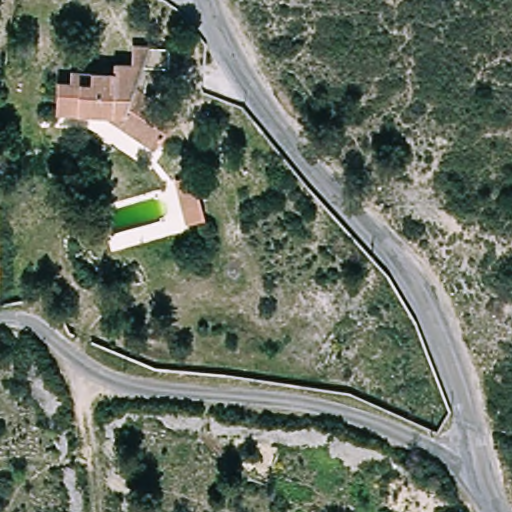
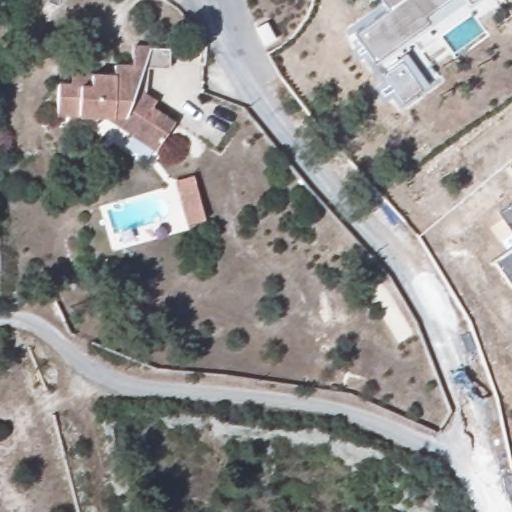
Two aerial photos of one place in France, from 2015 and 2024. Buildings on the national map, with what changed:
new [(353,31),(389,6),(385,0),(462,0),(374,62),(353,31)]
new [(468,0),(471,0),(468,1),(468,0)]
unchanged [(58,114),(60,81),(70,82),(70,71),(115,73),(115,63),(135,64),(135,47),(172,49),(172,66),(150,65),(148,98),(177,118),(156,148),(135,134),(110,116),(58,114)]
new [(402,101),(380,69),(407,51),(428,82),(402,101)]
unchanged [(167,188),(186,183),(198,226),(179,231),(167,188)]
new [(496,212),(512,201),(512,235),(496,212)]
new [(510,290),(490,263),(512,248),(512,288),(510,290)]
unchanged [(427,495),(420,512),(414,512),(387,502),(392,479),(427,495)]

